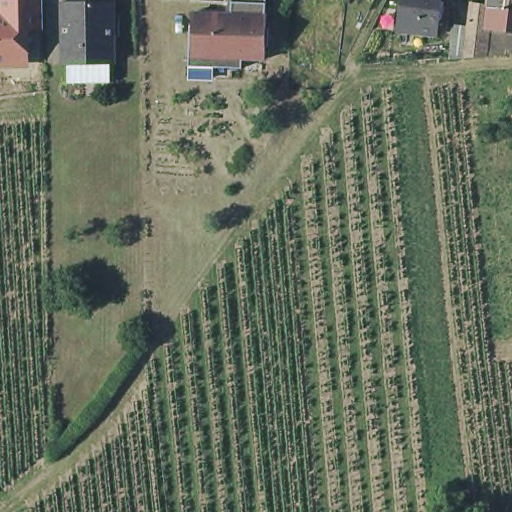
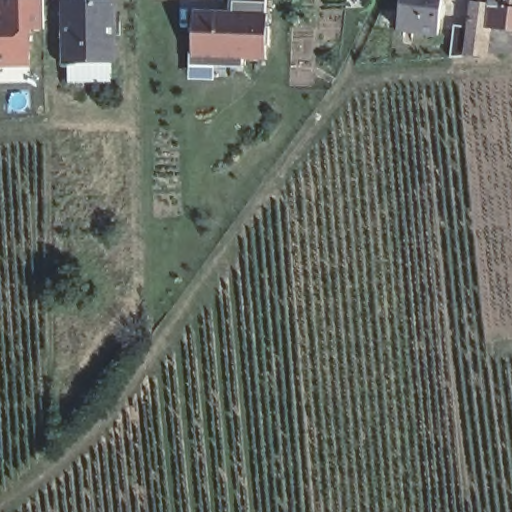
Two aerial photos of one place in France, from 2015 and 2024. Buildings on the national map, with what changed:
unchanged [(43,0),(44,31),(31,31),(31,69),(0,70),(0,0),(43,0)]
unchanged [(68,57),(68,0),(118,0),(118,57),(68,57)]
unchanged [(196,52),(196,39),(193,39),(194,20),(197,20),(198,8),(237,9),(237,0),(269,0),(269,10),(270,10),(269,22),(273,23),(273,42),(269,42),(269,54),(246,53),(246,63),(234,63),(218,62),(193,61),(193,52),(196,52)]
unchanged [(445,0),(441,35),(401,30),(405,0),(445,0)]
unchanged [(469,18),(473,0),(512,0),(512,53),(492,53),(460,54),(458,15),(469,18)]

